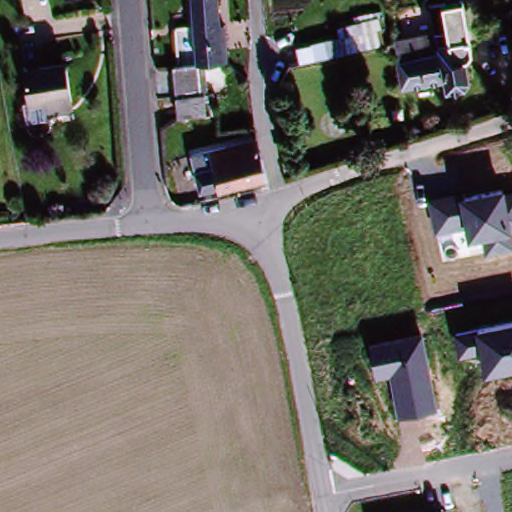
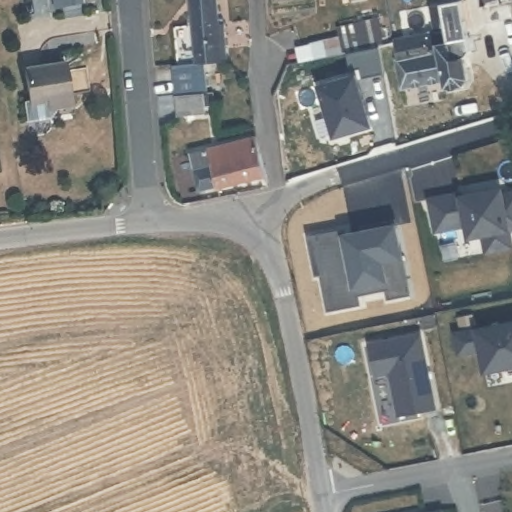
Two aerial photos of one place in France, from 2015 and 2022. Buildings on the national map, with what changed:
unchanged [(189,0),(210,0),(212,22),(222,24),(227,62),(201,65),(196,66),(189,0)]
unchanged [(431,28),(432,34),(447,31),(441,0),(475,0),(486,63),(472,65),(475,81),(439,85),(437,74),(397,81),(390,34),(431,28)]
new [(297,48),(314,45),(363,35),(341,39),(338,29),(362,24),(379,20),(383,44),(317,58),(300,61),(297,48)]
new [(386,73),(364,77),(362,67),(352,69),(348,51),(381,45),(386,73)]
unchanged [(72,104),(57,107),(55,96),(31,100),(24,66),(64,59),(72,104)]
unchanged [(196,66),(201,65),(205,118),(177,119),(172,68),(196,66)]
new [(369,130),(332,138),(321,85),(358,77),(369,130)]
unchanged [(189,149),(259,141),(264,179),(194,188),(189,149)]
unchanged [(427,199),(460,191),(461,197),(512,189),(512,251),(485,256),(481,241),(467,243),(464,228),(436,236),(427,199)]
new [(322,274),(316,275),(308,237),(334,232),(343,230),(345,235),(362,232),(361,227),(395,220),(396,225),(410,295),(390,299),(360,304),(330,310),(322,274)]
unchanged [(512,322),(512,372),(482,376),(478,354),(457,358),(452,332),(512,322)]
unchanged [(437,411),(395,419),(388,376),(375,379),(368,342),(422,332),(437,411)]
unchanged [(434,512),(443,510),(444,512),(434,512)]

